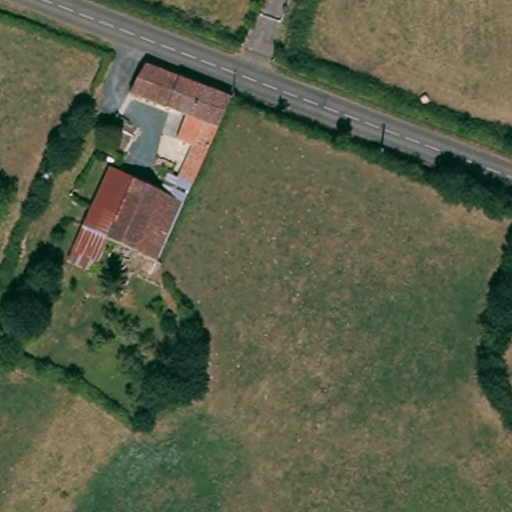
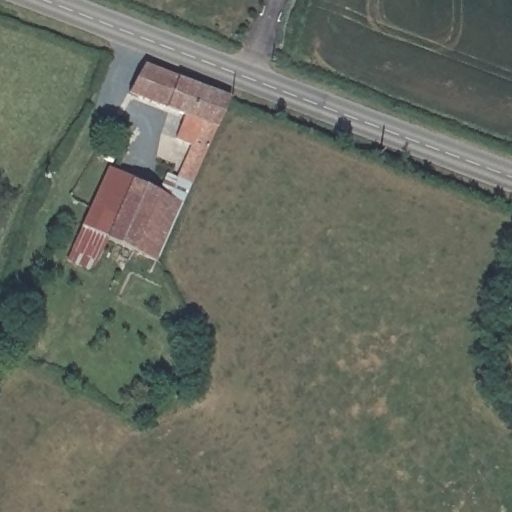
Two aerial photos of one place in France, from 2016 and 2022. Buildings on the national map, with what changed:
unchanged [(114,163),(162,185),(167,172),(180,179),(194,147),(175,141),(187,113),(134,90),(150,63),(237,97),(210,144),(155,277),(142,272),(148,255),(112,241),(101,272),(71,261),(114,163)]

